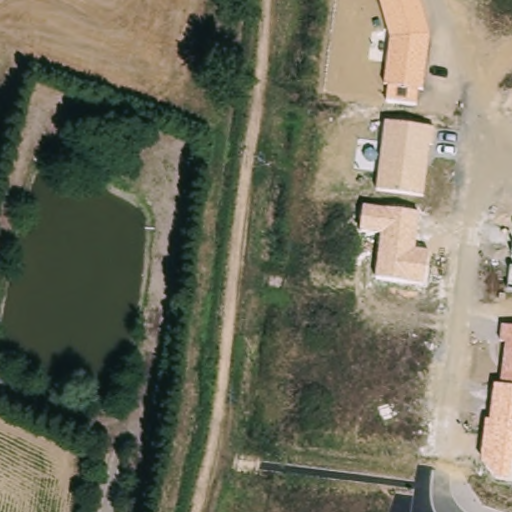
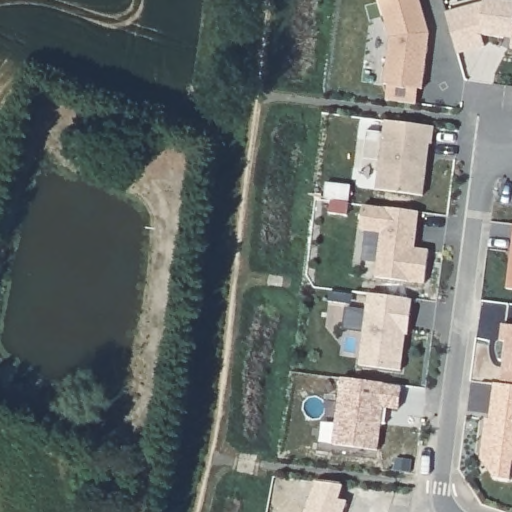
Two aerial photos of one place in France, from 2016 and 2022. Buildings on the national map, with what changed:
unchanged [(389,86),(382,86),(389,36),(379,0),(419,0),(429,35),(423,91),(419,90),(415,105),(386,101),(389,86)]
new [(485,0),(493,0),(512,3),(512,38),(486,36),(486,55),(458,55),(446,14),(484,3),(485,0)]
new [(512,38),(512,50),(510,50),(512,38)]
unchanged [(376,190),(385,122),(431,127),(424,196),(376,190)]
unchanged [(380,235),(359,231),(362,205),(418,212),(414,249),(430,251),(425,284),(375,278),(380,235)]
unchanged [(512,289),(507,288),(512,243),(512,289)]
new [(413,300),(410,316),(408,334),(406,334),(401,371),(359,365),(368,294),(413,300)]
unchanged [(482,460),(485,420),(489,420),(493,385),(500,385),(505,344),(500,343),(502,326),(512,327),(512,462),(510,480),(494,479),(482,460)]
new [(381,423),(377,450),(333,445),(342,378),(401,386),(398,410),(386,408),(384,424),(381,423)]

